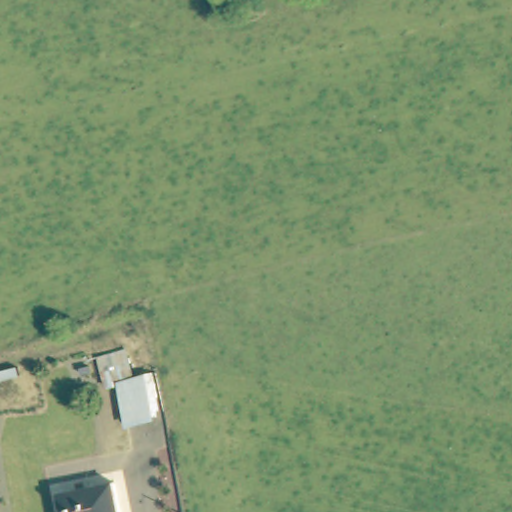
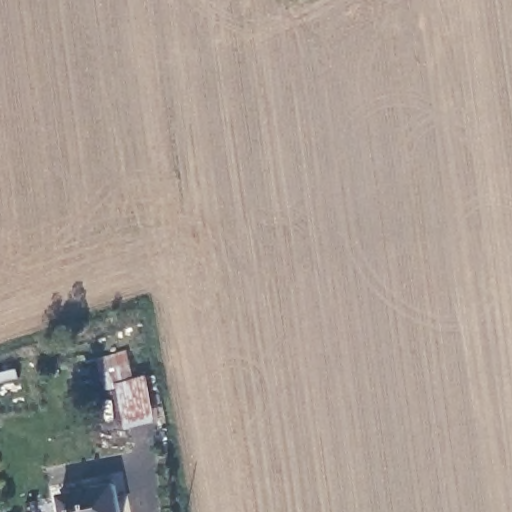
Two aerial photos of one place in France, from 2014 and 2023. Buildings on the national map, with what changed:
unchanged [(126,352),(135,378),(156,376),(164,418),(125,428),(118,385),(106,389),(95,360),(126,352)]
unchanged [(119,512),(62,512),(59,495),(114,485),(119,512)]

